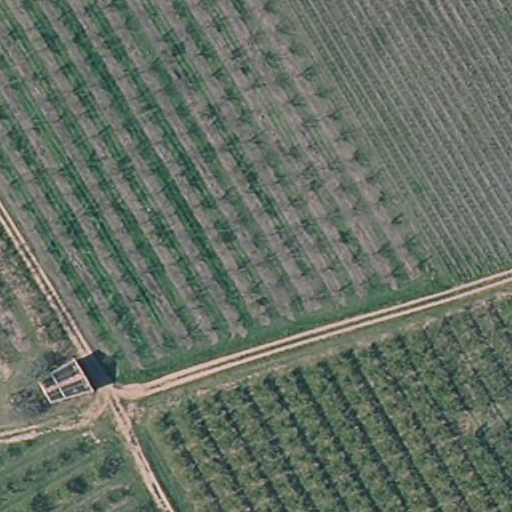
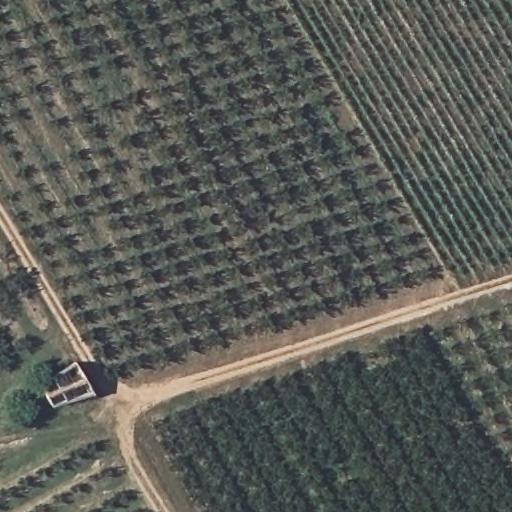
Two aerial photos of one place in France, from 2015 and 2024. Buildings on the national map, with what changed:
unchanged [(36,372),(75,358),(96,396),(53,405),(36,372)]

